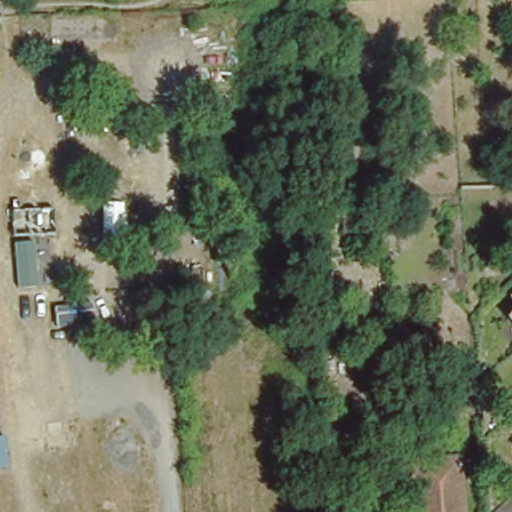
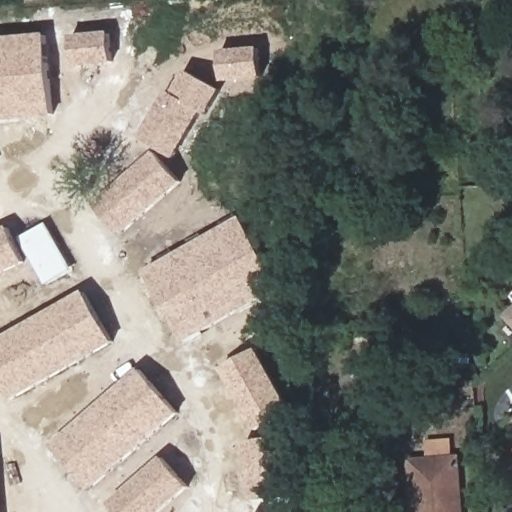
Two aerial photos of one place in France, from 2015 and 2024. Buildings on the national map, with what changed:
new [(110,32),(114,62),(73,66),(70,36),(110,32)]
new [(54,117),(0,122),(0,37),(47,33),(54,117)]
new [(259,47),(262,79),(224,82),(220,50),(259,47)]
new [(183,184),(121,237),(94,205),(155,152),(144,142),(186,70),(223,91),(209,115),(204,112),(176,160),(158,149),(156,153),(183,184)]
demolished [(56,187),(80,185),(84,222),(60,225),(56,187)]
demolished [(11,210),(53,209),(55,236),(13,236),(11,210)]
new [(242,216),(279,282),(182,337),(144,272),(242,216)]
new [(73,268),(46,285),(20,238),(46,222),(73,268)]
new [(0,230),(8,227),(24,266),(0,277),(0,230)]
demolished [(36,281),(16,284),(13,246),(32,245),(36,281)]
new [(114,341),(13,401),(0,378),(0,338),(84,291),(114,341)]
unchanged [(508,297),(512,293),(512,302),(508,297)]
unchanged [(504,317),(512,311),(512,326),(504,317)]
unchanged [(452,315),(472,313),(475,350),(455,351),(452,315)]
new [(221,369),(255,350),(290,412),(256,431),(221,369)]
new [(139,368),(180,415),(91,492),(51,445),(139,368)]
new [(299,485),(276,487),(277,500),(251,502),(245,441),(294,436),(299,485)]
demolished [(0,438),(3,438),(5,465),(0,466),(0,438)]
new [(190,488),(163,512),(117,512),(109,503),(163,457),(190,488)]
unchanged [(422,460),(457,457),(461,512),(414,512),(411,460),(422,460)]
demolished [(49,472),(55,512),(32,512),(25,475),(49,472)]
new [(0,512),(0,505),(1,512),(0,512)]

